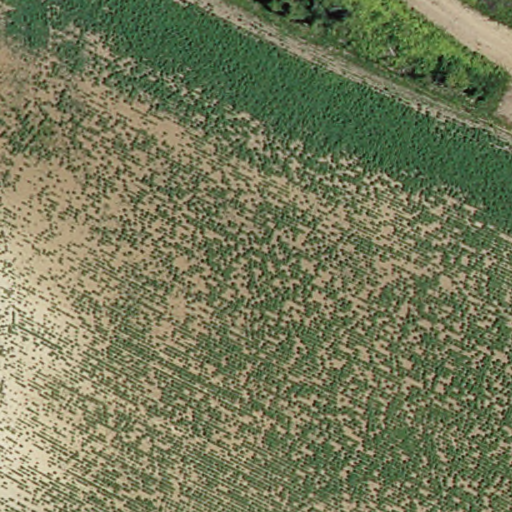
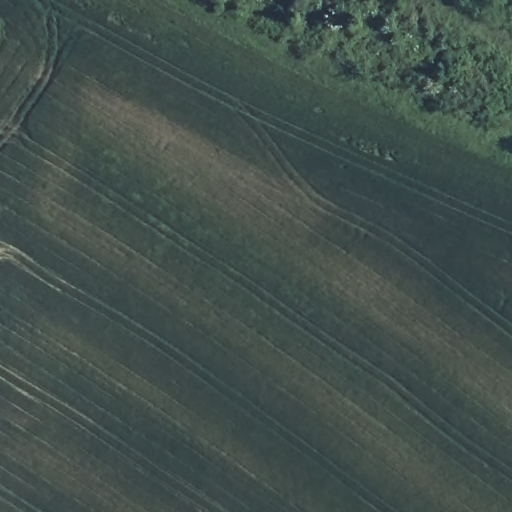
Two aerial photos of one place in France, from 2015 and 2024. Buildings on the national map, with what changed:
[]

